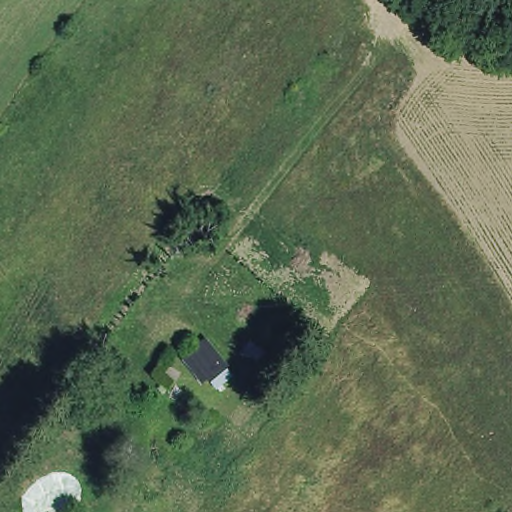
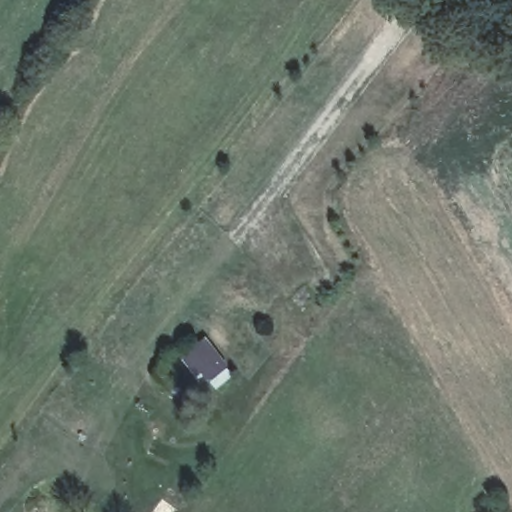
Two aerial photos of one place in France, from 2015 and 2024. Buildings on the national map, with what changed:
unchanged [(199,325),(230,369),(199,388),(170,344),(199,325)]

